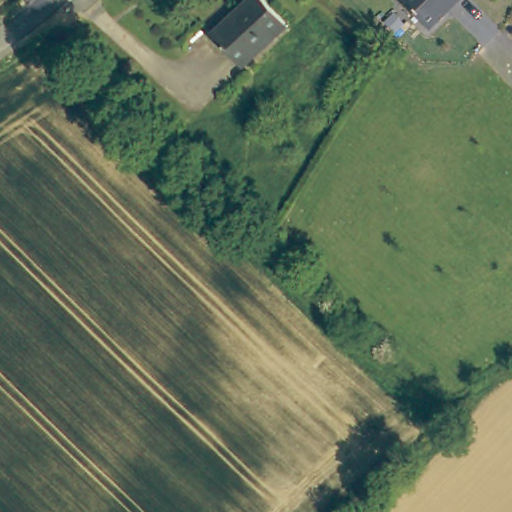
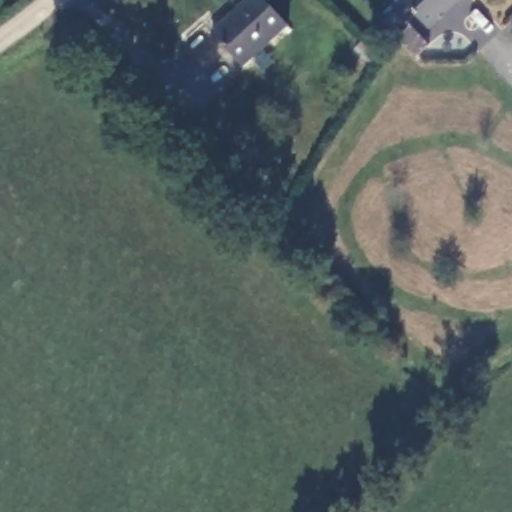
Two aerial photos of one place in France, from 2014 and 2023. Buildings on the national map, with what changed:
unchanged [(302,33),(258,82),(214,41),(257,0),(270,0),(302,33)]
unchanged [(396,2),(397,0),(457,0),(425,32),(396,2)]

